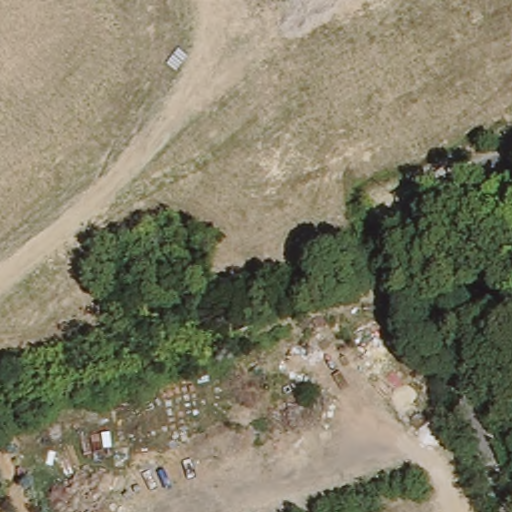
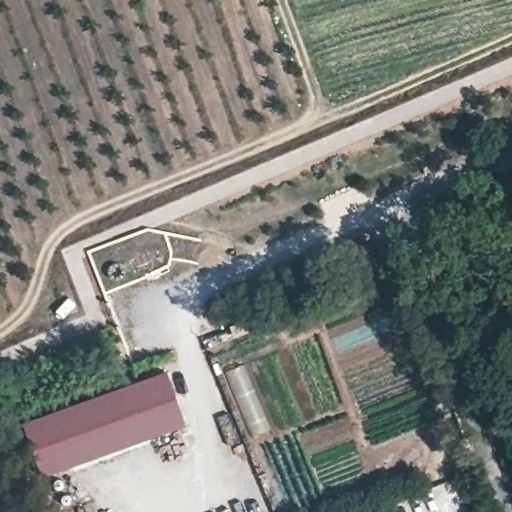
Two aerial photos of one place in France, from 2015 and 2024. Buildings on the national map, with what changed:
unchanged [(229,328),(261,317),(264,325),(232,336),(229,328)]
new [(186,425),(41,476),(21,422),(165,371),(186,425)]

